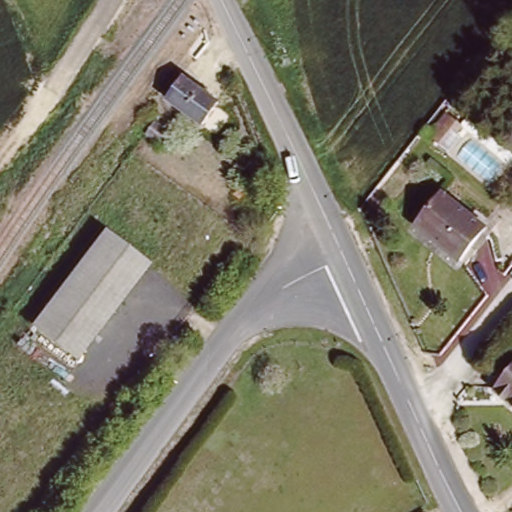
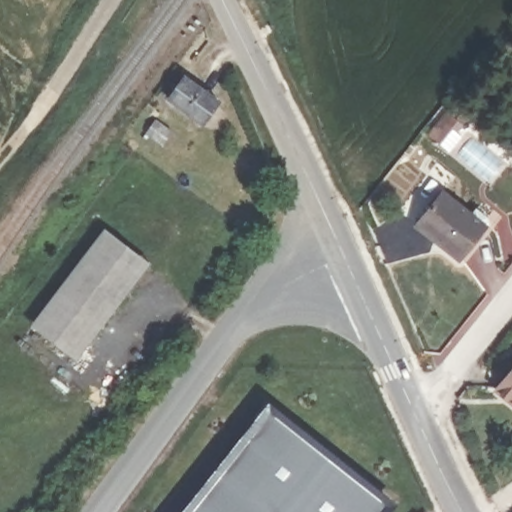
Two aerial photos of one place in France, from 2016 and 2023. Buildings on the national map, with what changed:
unchanged [(221,98),(203,122),(167,97),(186,71),(221,98)]
new [(445,121),(458,131),(454,137),(447,132),(440,126),(445,121)]
demolished [(442,133),(447,127),(460,138),(456,144),(450,139),(442,133)]
unchanged [(464,260),(420,226),(447,192),(490,226),(464,260)]
unchanged [(93,242),(102,231),(145,263),(137,275),(92,337),(47,305),(93,242)]
unchanged [(92,337),(77,359),(32,326),(47,305),(92,337)]
unchanged [(497,383),(512,365),(512,395),(497,383)]
new [(270,404),(397,504),(390,512),(184,512),(270,404)]

